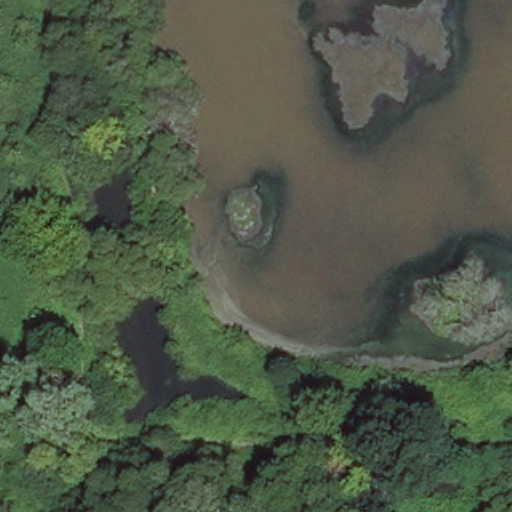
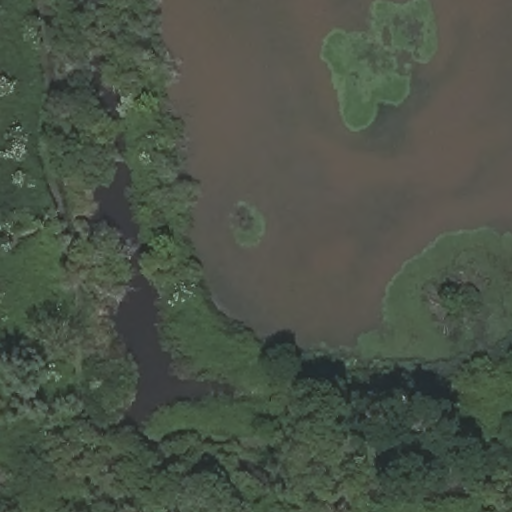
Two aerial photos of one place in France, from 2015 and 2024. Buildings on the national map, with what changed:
unchanged [(6,225),(19,224),(22,259),(9,260),(6,225)]

